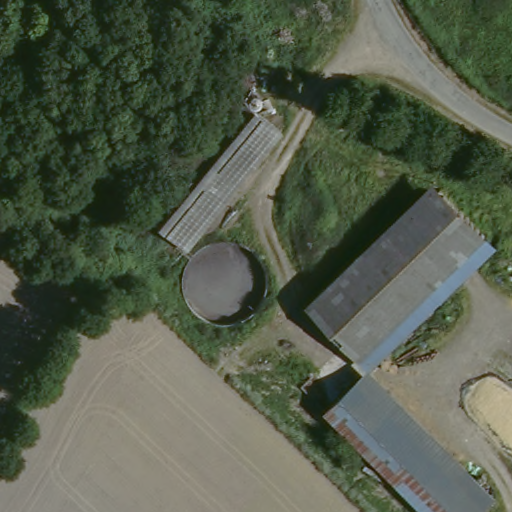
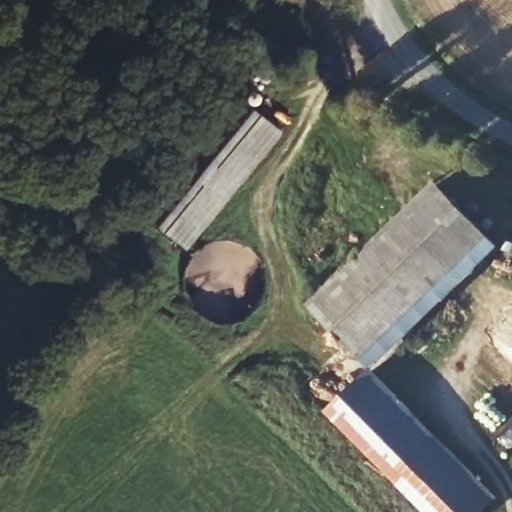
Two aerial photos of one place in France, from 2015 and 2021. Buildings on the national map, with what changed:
unchanged [(274,135),(186,252),(152,234),(244,112),(274,135)]
unchanged [(490,239),(364,368),(318,313),(439,189),(490,239)]
unchanged [(482,480),(499,498),(484,512),(412,512),(323,424),(364,380),(471,488),(482,480)]

